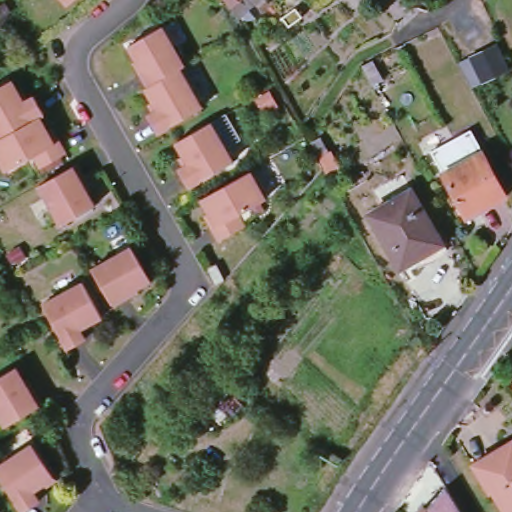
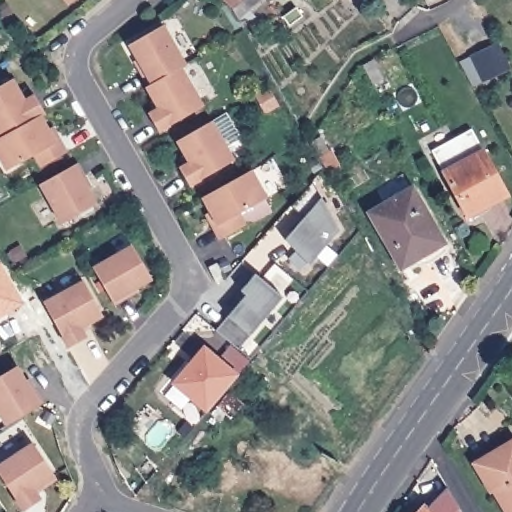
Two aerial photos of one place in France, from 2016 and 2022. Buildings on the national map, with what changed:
unchanged [(232,9),(233,8),(225,0),(241,0),(247,11),(238,20),(232,9)]
unchanged [(296,6),(303,15),(289,26),(282,16),(296,6)]
unchanged [(185,64),(180,67),(152,83),(129,44),(163,25),(185,64)]
new [(499,45),(510,71),(484,82),(472,88),(461,61),(473,56),(499,45)]
unchanged [(383,79),(373,84),(363,65),(373,60),(383,79)]
unchanged [(180,67),(203,106),(159,131),(149,114),(158,108),(146,86),(152,83),(180,67)]
unchanged [(0,137),(0,86),(12,79),(25,101),(35,95),(45,113),(40,115),(1,138),(0,137)]
unchanged [(40,115),(55,141),(60,139),(67,152),(41,166),(35,154),(7,170),(0,159),(0,138),(1,138),(40,115)]
unchanged [(234,160),(189,186),(179,168),(189,162),(177,141),(211,121),(234,160)]
unchanged [(320,137),(329,152),(319,157),(311,142),(320,137)]
unchanged [(464,153),(477,146),(481,152),(483,151),(506,194),(467,216),(444,172),(467,159),(464,153)]
unchanged [(96,204),(62,223),(40,184),(74,165),(96,204)]
unchanged [(267,198),(239,213),(245,225),(220,239),(213,226),(217,224),(202,197),(251,170),(267,198)]
new [(302,219),(289,207),(312,182),(339,230),(309,264),(283,241),(302,219)]
unchanged [(441,239),(417,254),(419,257),(401,267),(370,213),(412,188),(441,239)]
unchanged [(146,279),(107,302),(88,268),(127,245),(146,279)]
unchanged [(217,283),(208,267),(217,263),(225,279),(217,283)]
new [(245,295),(240,291),(255,274),(282,297),(237,349),(215,331),(245,295)]
unchanged [(102,316),(80,327),(86,338),(68,347),(44,302),(83,281),(102,316)]
new [(203,348),(237,376),(207,412),(173,384),(203,348)]
unchanged [(39,406),(6,425),(0,415),(0,376),(17,366),(39,406)]
unchanged [(49,471),(29,486),(35,494),(19,506),(0,481),(0,458),(26,439),(49,471)]
unchanged [(495,492),(492,494),(474,465),(512,441),(512,512),(506,512),(495,492)]
unchanged [(424,506),(429,512),(418,512),(424,506)]

